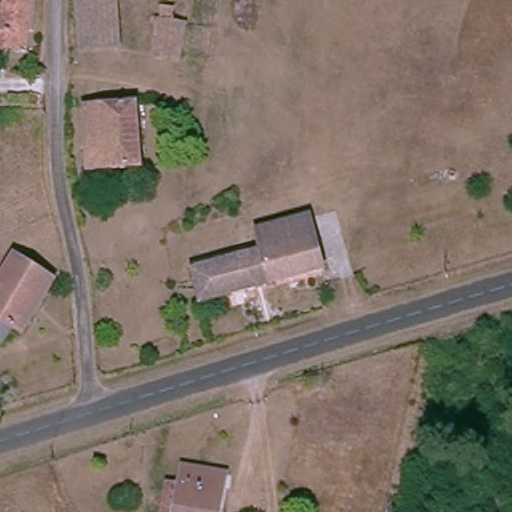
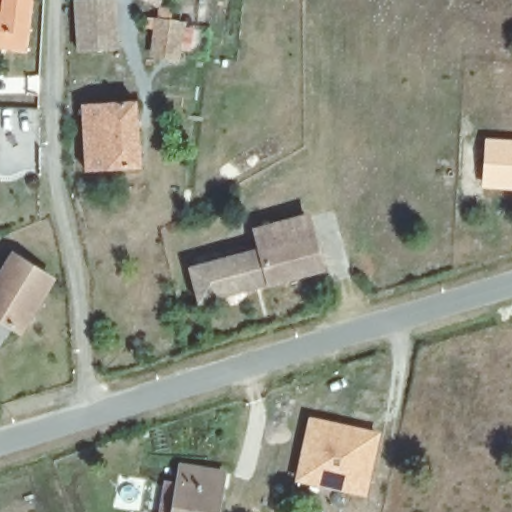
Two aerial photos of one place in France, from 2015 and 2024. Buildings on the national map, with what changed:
unchanged [(8,0),(35,0),(30,50),(0,47),(0,6),(7,7),(8,0)]
unchanged [(111,49),(78,49),(79,0),(111,0),(111,49)]
unchanged [(181,58),(153,57),(153,24),(180,23),(181,58)]
unchanged [(81,168),(76,104),(131,102),(138,165),(81,168)]
new [(484,136),(512,139),(512,190),(480,187),(484,136)]
unchanged [(311,241),(259,254),(254,233),(306,221),(311,241)]
unchanged [(318,273),(196,303),(189,272),(259,254),(311,241),(318,273)]
unchanged [(38,282),(11,329),(0,323),(0,267),(3,261),(38,282)]
new [(308,414),(381,431),(366,497),(293,480),(308,414)]
unchanged [(179,489),(183,471),(224,478),(216,512),(161,512),(166,488),(179,489)]

